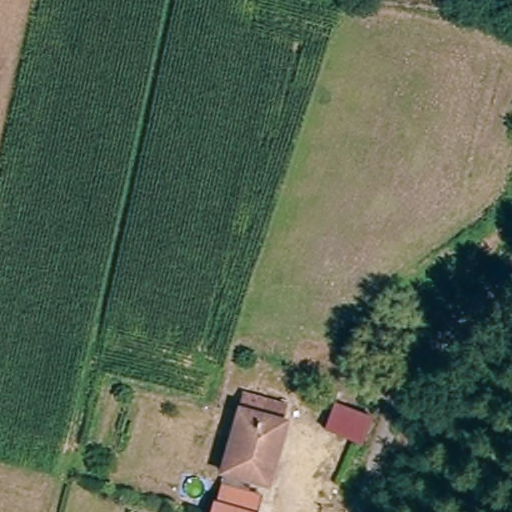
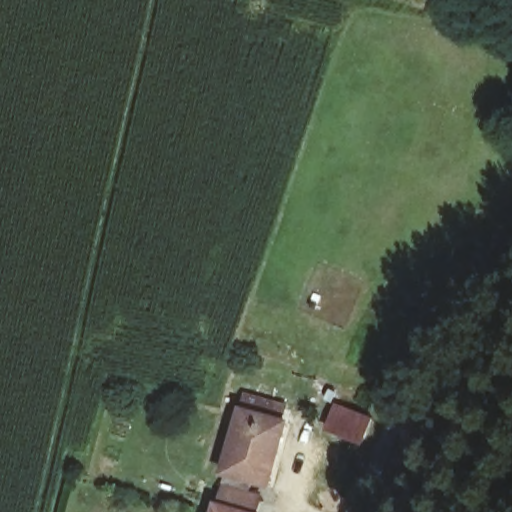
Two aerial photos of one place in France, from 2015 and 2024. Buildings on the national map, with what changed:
unchanged [(247,397),(275,403),(285,407),(280,425),(286,427),(269,490),(254,486),(250,499),(258,500),(256,512),(215,512),(242,415),(247,397)]
unchanged [(357,435),(341,429),(346,416),(336,411),(338,403),(366,415),(357,435)]

